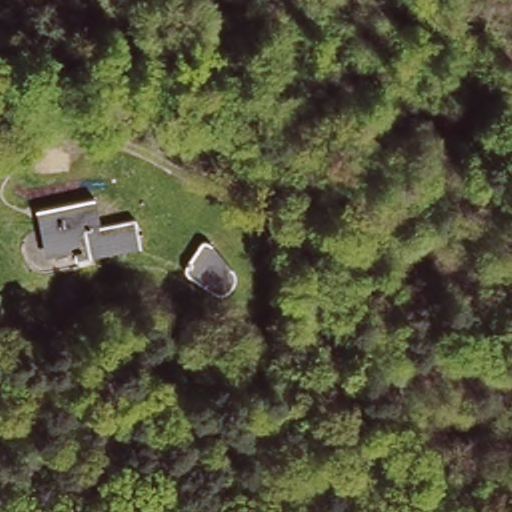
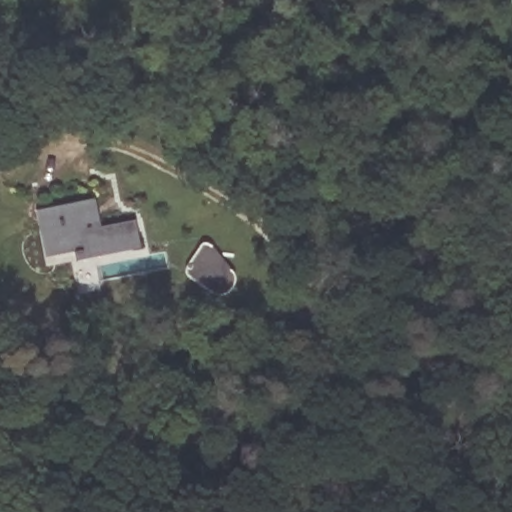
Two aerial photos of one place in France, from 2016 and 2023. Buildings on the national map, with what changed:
unchanged [(75,262),(73,252),(51,256),(43,257),(39,232),(35,210),(42,208),(88,200),(95,198),(98,217),(100,227),(135,220),(140,242),(140,249),(90,259),(75,262)]
unchanged [(230,288),(226,297),(220,301),(211,301),(183,282),(181,278),(181,272),(197,249),(203,248),(206,250),(207,251),(226,275),(230,279),(230,288)]
unchanged [(306,299),(344,315),(336,334),(298,317),(306,299)]
unchanged [(206,358),(215,361),(212,374),(202,371),(206,358)]

